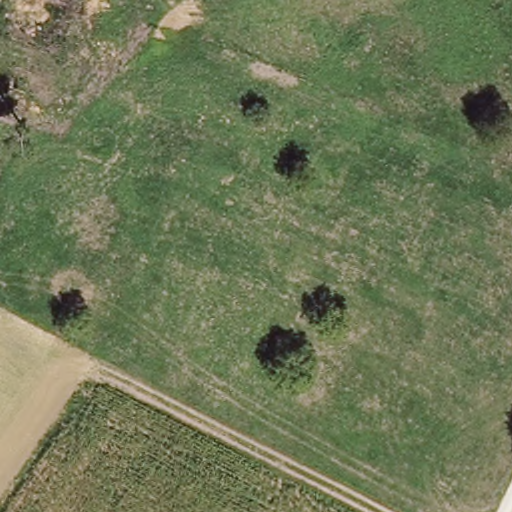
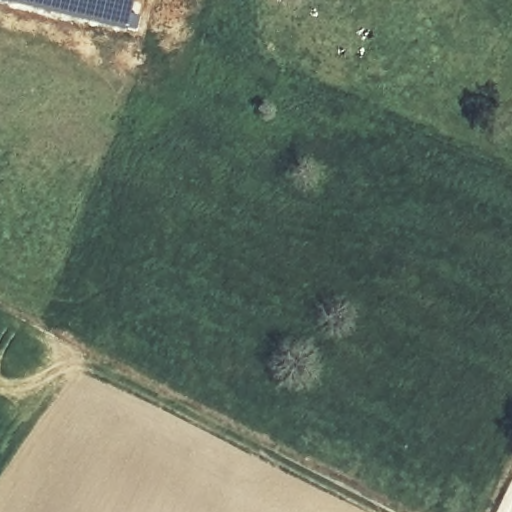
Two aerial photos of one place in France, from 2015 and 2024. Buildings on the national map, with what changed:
new [(131,11),(141,13),(137,28),(127,27),(105,23),(35,8),(1,0),(133,0),(131,11)]
demolished [(76,16),(100,21),(95,40),(71,35),(76,16)]

